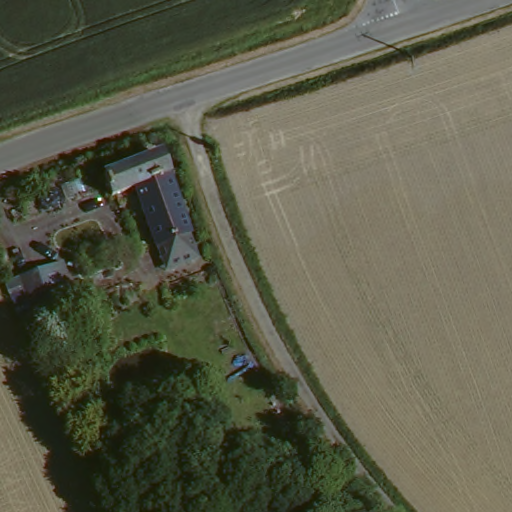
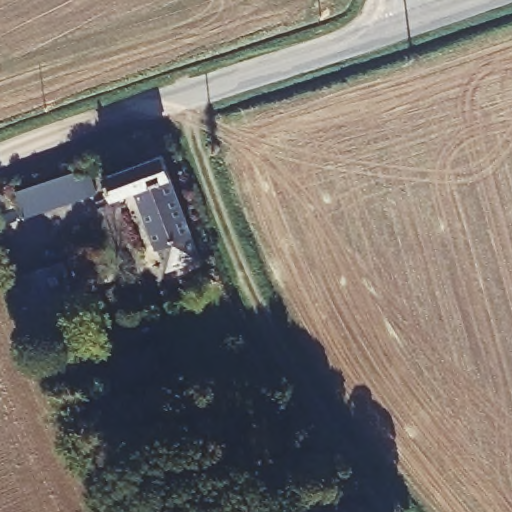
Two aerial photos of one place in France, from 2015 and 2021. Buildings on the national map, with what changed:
unchanged [(163,276),(154,253),(133,196),(111,203),(104,182),(160,161),(189,241),(197,264),(163,276)]
new [(16,190),(75,171),(84,195),(25,217),(16,190)]
unchanged [(31,321),(14,279),(55,264),(71,307),(31,321)]

